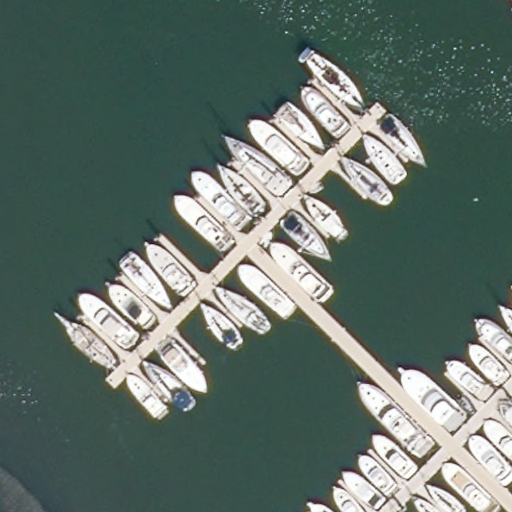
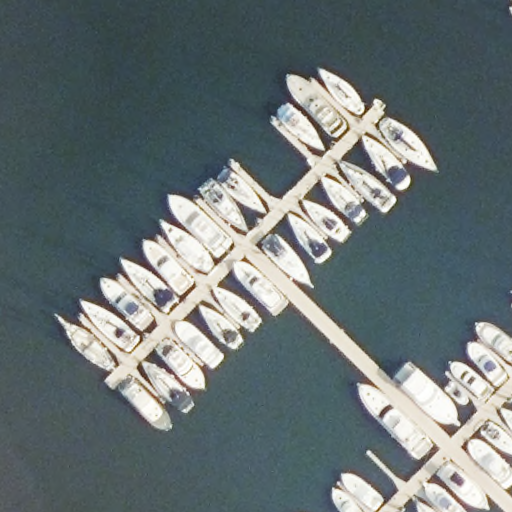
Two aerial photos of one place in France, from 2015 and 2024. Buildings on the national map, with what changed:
[]

